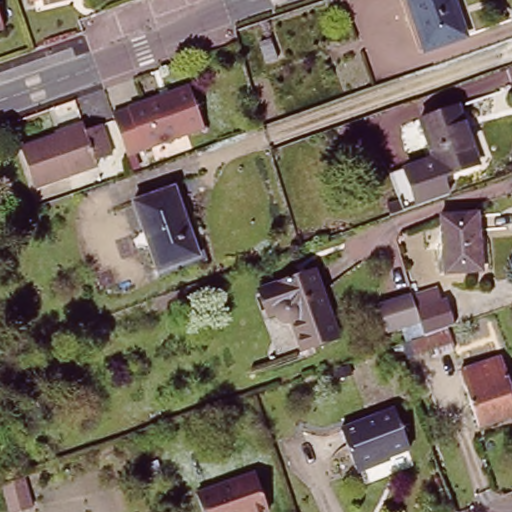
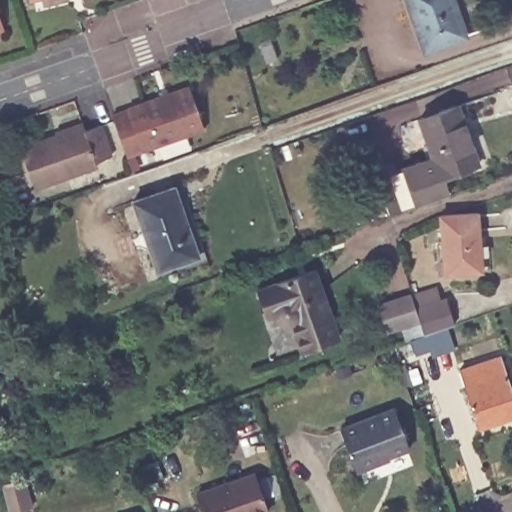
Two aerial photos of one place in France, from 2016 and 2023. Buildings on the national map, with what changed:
unchanged [(466,41),(426,56),(406,0),(452,0),(466,41)]
unchanged [(4,23),(0,25),(0,11),(4,23)]
unchanged [(266,63),(259,42),(271,38),(278,59),(266,63)]
unchanged [(142,100),(141,98),(189,81),(204,124),(127,151),(113,110),(142,100)]
unchanged [(388,200),(400,195),(391,168),(434,153),(421,114),(459,100),(479,159),(443,172),(449,189),(391,210),(388,200)]
unchanged [(100,125),(111,156),(96,161),(98,166),(34,188),(20,148),(62,133),(61,131),(83,123),(85,130),(100,125)]
unchanged [(158,271),(133,202),(174,187),(198,257),(158,271)]
unchanged [(479,219),(482,277),(444,278),(439,279),(438,267),(444,267),(441,221),(479,219)]
unchanged [(296,322),(293,323),(291,323),(288,323),(286,322),(284,320),(281,318),(281,317),(279,314),(272,316),(263,289),(320,269),(344,338),(306,351),(296,322)]
unchanged [(406,341),(419,336),(415,321),(381,331),(374,304),(407,294),(408,297),(432,290),(436,301),(442,299),(450,325),(443,327),(451,349),(432,355),(429,349),(411,355),(402,358),(397,344),(406,341)]
unchanged [(460,365),(501,352),(512,387),(512,410),(478,420),(460,365)]
unchanged [(408,449),(388,457),(388,459),(358,470),(343,429),(393,410),(408,449)]
unchanged [(146,483),(143,471),(155,468),(158,479),(146,483)]
unchanged [(256,468),(269,506),(252,512),(204,512),(196,489),(256,468)]
unchanged [(31,508),(19,512),(9,512),(1,485),(22,478),(31,508)]

